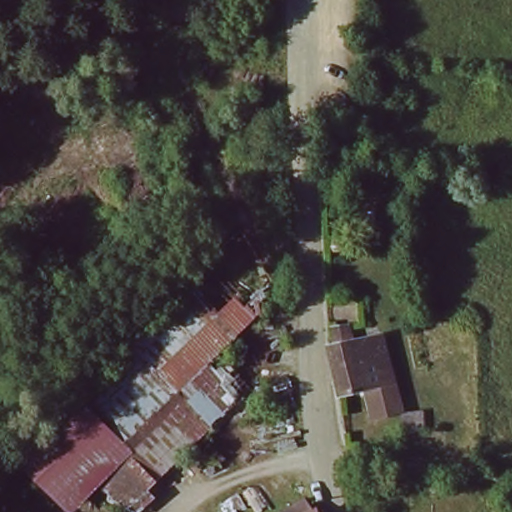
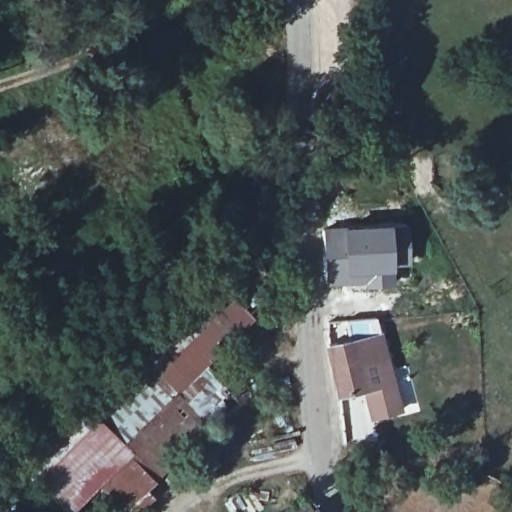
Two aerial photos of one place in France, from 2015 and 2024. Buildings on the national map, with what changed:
new [(323,285),(321,228),(391,224),(409,224),(410,265),(394,267),(393,284),(323,285)]
unchanged [(200,294),(210,305),(117,401),(92,376),(89,373),(180,275),(200,294)]
unchanged [(210,305),(200,294),(219,279),(241,301),(260,284),(273,299),(216,356),(252,392),(152,491),(122,458),(148,432),(117,401),(210,305)]
unchanged [(370,359),(383,358),(385,391),(376,392),(335,394),(331,342),(330,329),(357,327),(359,340),(360,359),(370,359)]
unchanged [(148,432),(122,458),(70,512),(17,456),(92,376),(117,401),(148,432)]
unchanged [(308,506),(312,512),(298,512),(308,506)]

